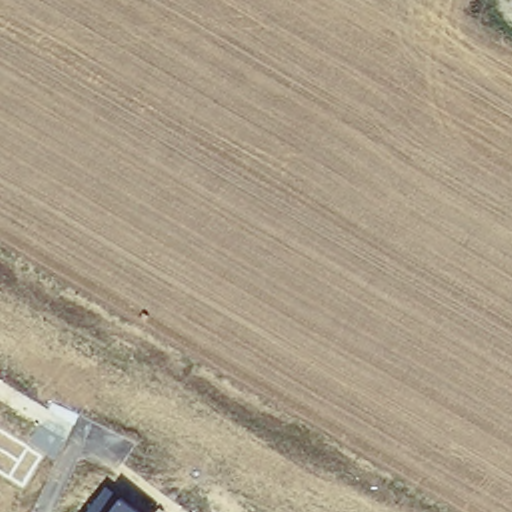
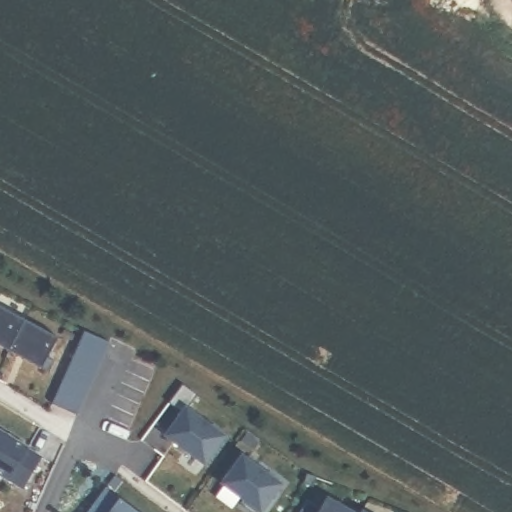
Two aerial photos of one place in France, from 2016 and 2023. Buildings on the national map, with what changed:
new [(21,316),(5,347),(0,344),(0,304),(21,316)]
new [(21,316),(56,335),(45,354),(52,358),(46,369),(5,347),(21,316)]
new [(61,370),(67,356),(73,342),(80,327),(105,338),(98,353),(92,367),(86,382),(79,396),(73,411),(48,400),(54,385),(61,370)]
new [(193,391),(183,405),(220,431),(200,458),(162,431),(178,409),(164,399),(178,380),(193,391)]
new [(24,444),(24,445),(37,453),(19,483),(0,472),(0,429),(24,444)]
new [(276,479),(253,510),(236,497),(239,493),(218,478),(238,451),(276,479)]
new [(311,472),(307,481),(298,477),(301,468),(311,472)]
unchanged [(119,496),(141,512),(85,512),(105,484),(119,496)]
new [(316,502),(322,491),(354,509),(353,512),(292,512),(302,494),(316,502)]
new [(369,512),(353,512),(356,505),(369,512)]

